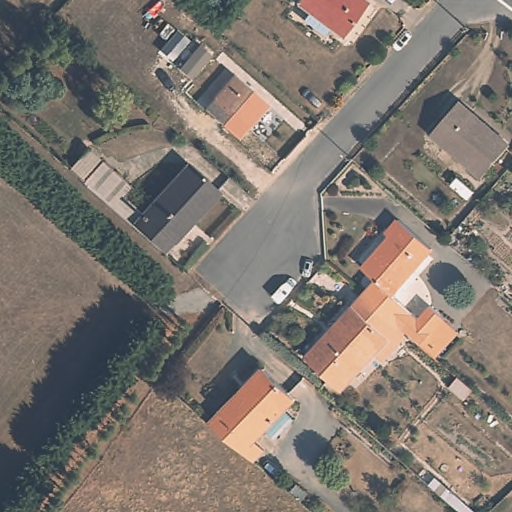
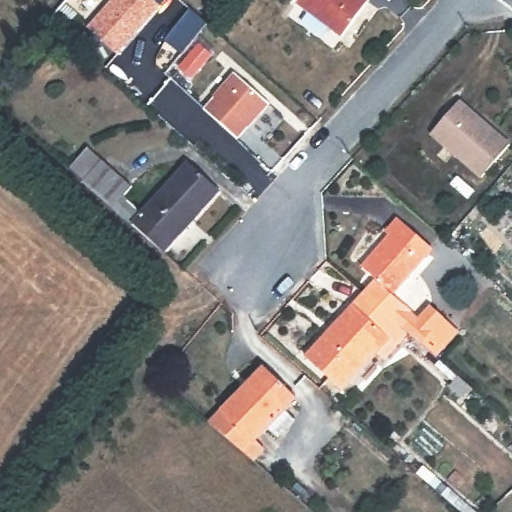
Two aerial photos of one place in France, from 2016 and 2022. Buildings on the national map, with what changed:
new [(165,0),(160,6),(118,55),(86,29),(111,0),(165,0)]
unchanged [(296,4),(299,0),(362,0),(368,5),(341,39),(296,4)]
new [(195,37),(215,53),(191,81),(172,65),(195,37)]
unchanged [(237,140),(205,111),(236,77),(268,106),(237,140)]
unchanged [(482,180),(430,137),(458,103),(510,147),(482,180)]
unchanged [(142,214),(188,165),(220,194),(164,254),(82,182),(68,170),(89,149),(102,161),(132,187),(124,197),(142,214)]
unchanged [(435,358),(431,356),(420,347),(407,335),(363,296),(376,281),(361,268),(390,238),(385,234),(398,220),(432,251),(391,297),(417,321),(428,308),(445,321),(457,332),(435,358)]
unchanged [(376,355),(342,392),(305,359),(363,296),(407,335),(383,361),(376,355)]
unchanged [(243,453),(210,425),(263,369),(296,401),(255,442),(266,452),(255,463),(243,453)]
unchanged [(449,388),(457,378),(473,392),(465,402),(449,388)]
unchanged [(450,491),(474,512),(459,512),(443,497),(450,491)]

